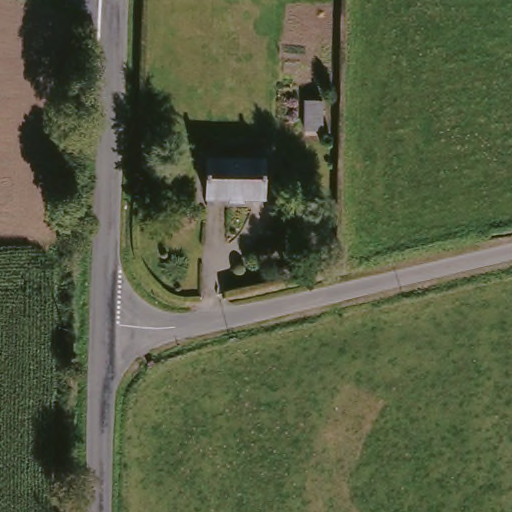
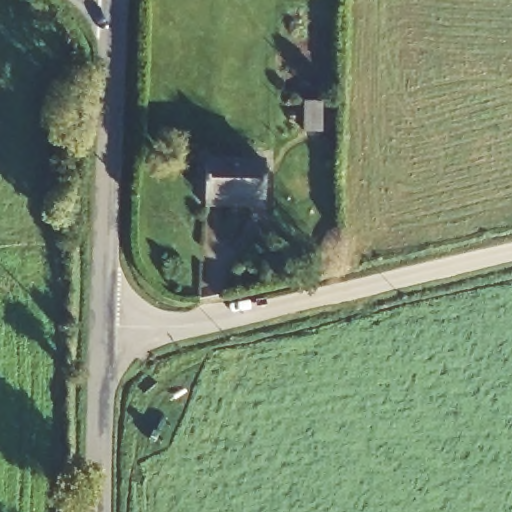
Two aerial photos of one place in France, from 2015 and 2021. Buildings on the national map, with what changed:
unchanged [(299,110),(318,110),(318,139),(299,138),(299,110)]
unchanged [(260,168),(259,209),(201,207),(202,168),(260,168)]

